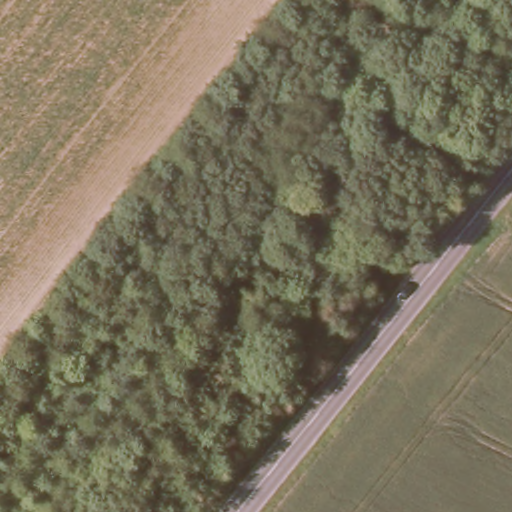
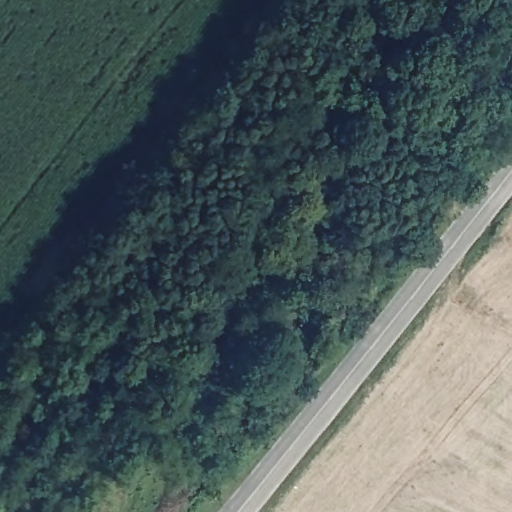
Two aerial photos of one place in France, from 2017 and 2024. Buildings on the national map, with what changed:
unchanged [(310,224),(318,215),(326,221),(334,212),(352,226),(367,209),(390,229),(375,248),(360,265),(310,224)]

